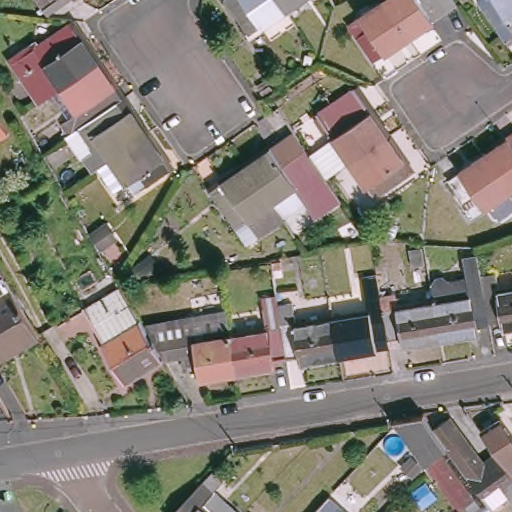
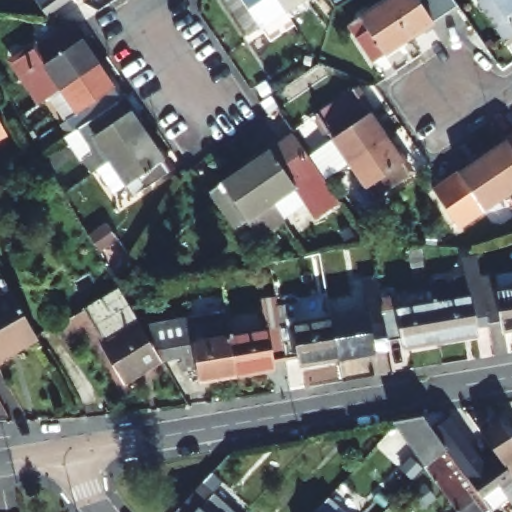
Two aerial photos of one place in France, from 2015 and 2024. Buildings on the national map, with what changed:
unchanged [(42,14),(33,0),(64,0),(42,14)]
unchanged [(73,2),(71,0),(77,0),(73,2)]
unchanged [(238,41),(214,5),(221,0),(263,0),(275,17),(238,41)]
unchanged [(301,4),(299,1),(275,17),(263,0),(307,0),(301,4)]
unchanged [(386,0),(442,0),(448,10),(403,41),(379,5),(386,0)]
unchanged [(480,5),(487,0),(512,0),(512,45),(508,47),(480,5)]
unchanged [(367,65),(343,29),(379,5),(403,41),(367,65)]
unchanged [(69,90),(51,101),(25,61),(47,46),(50,50),(84,30),(107,66),(69,90)]
unchanged [(107,66),(130,102),(87,130),(82,133),(75,122),(86,115),(69,90),(107,66)]
unchanged [(321,116),(356,92),(388,140),(353,164),(321,116)]
unchanged [(130,102),(154,139),(104,170),(100,173),(91,159),(101,152),(87,130),(130,102)]
unchanged [(6,137),(0,141),(0,127),(6,137)]
unchanged [(486,155),(512,138),(512,190),(511,190),(486,155)]
unchanged [(154,139),(177,175),(140,198),(133,186),(119,194),(104,170),(154,139)]
unchanged [(286,140),(310,176),(287,191),(300,211),(287,219),(251,163),(286,140)]
unchanged [(412,176),(377,199),(353,164),(388,140),(412,176)]
unchanged [(475,216),(450,180),(486,155),(511,190),(475,216)]
unchanged [(249,244),(214,188),(251,163),(287,219),(249,244)]
unchanged [(416,246),(421,246),(422,247),(424,262),(411,264),(408,245),(416,246)]
unchanged [(425,286),(428,281),(437,280),(443,285),(461,280),(457,262),(471,260),(474,277),(475,282),(476,287),(477,295),(481,313),(483,325),(468,327),(470,336),(433,342),(431,332),(429,318),(426,304),(423,290),(423,286),(425,286)]
unchanged [(495,323),(483,325),(481,313),(477,295),(512,289),(512,329),(497,331),(495,323)]
unchanged [(31,315),(40,330),(11,346),(14,351),(0,359),(0,300),(18,290),(31,315)]
unchanged [(139,330),(158,363),(119,385),(97,345),(98,345),(81,311),(118,290),(139,330)]
unchanged [(429,318),(431,332),(433,342),(383,351),(381,342),(376,313),(374,301),(389,300),(391,310),(426,304),(429,318)]
unchanged [(368,345),(370,353),(333,360),(326,321),(376,313),(381,342),(368,345)]
unchanged [(196,384),(194,375),(179,377),(177,361),(159,365),(158,363),(139,330),(222,316),(226,340),(232,377),(196,384)]
unchanged [(296,366),(294,357),(282,360),(277,330),(326,321),(333,360),(296,366)]
unchanged [(267,362),(268,371),(232,377),(226,340),(277,330),(282,360),(267,362)]
unchanged [(427,465),(395,422),(394,420),(392,418),(419,415),(422,414),(435,431),(442,441),(450,452),(485,500),(469,512),(459,512),(456,507),(440,484),(427,465)]
unchanged [(488,464),(499,455),(512,474),(512,502),(502,488),(485,500),(450,452),(442,441),(435,431),(454,418),(488,464)]
unchanged [(491,445),(482,431),(501,418),(512,434),(512,474),(499,455),(491,445)]
unchanged [(211,512),(174,512),(192,493),(211,512)]
unchanged [(332,512),(328,512),(330,510),(332,512)]

